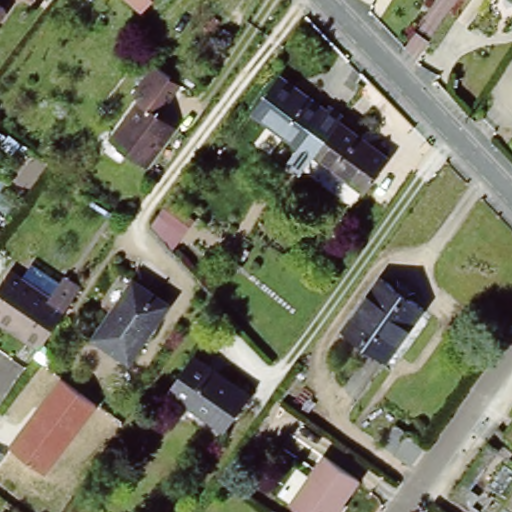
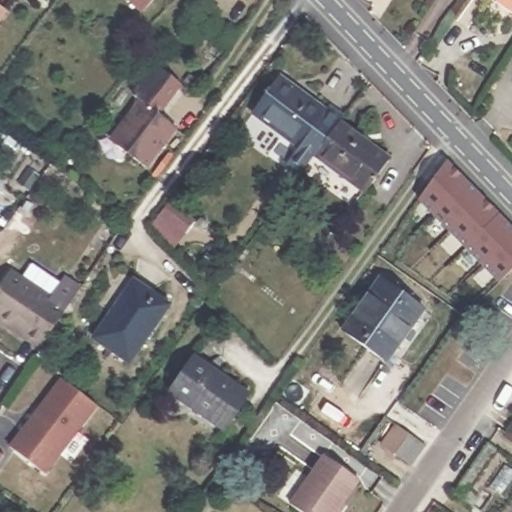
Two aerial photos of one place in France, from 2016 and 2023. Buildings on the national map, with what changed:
unchanged [(131,0),(141,0),(137,4),(131,0)]
unchanged [(0,14),(0,5),(5,8),(0,14)]
unchanged [(157,121),(175,134),(145,175),(108,149),(139,108),(133,103),(157,71),(180,91),(157,121)]
unchanged [(322,107),(297,144),(249,110),(276,73),(322,107)]
new [(285,167),(299,146),(297,144),(322,107),(326,111),(330,104),(345,114),(338,123),(314,156),(300,177),(285,167)]
unchanged [(389,159),(365,193),(314,156),(338,123),(389,159)]
new [(499,282),(418,201),(447,159),(512,225),(512,270),(499,282)]
unchanged [(195,222),(185,234),(160,216),(170,203),(195,222)]
unchanged [(17,280),(26,269),(52,285),(57,278),(74,289),(42,337),(36,346),(33,350),(0,328),(0,277),(3,272),(17,280)]
unchanged [(169,301),(128,359),(92,335),(134,277),(169,301)]
unchanged [(424,309),(387,360),(344,330),(382,279),(424,309)]
unchanged [(250,386),(225,421),(170,383),(195,349),(250,386)]
unchanged [(60,379),(97,407),(47,477),(10,448),(60,379)]
unchanged [(505,435),(512,425),(512,440),(505,435)]
unchanged [(395,452),(410,433),(427,444),(413,465),(395,452)]
unchanged [(452,496),(490,441),(500,448),(469,493),(479,501),(472,511),(452,496)]
unchanged [(0,461),(0,456),(2,458),(0,461)]
unchanged [(359,479),(336,512),(302,512),(292,505),(326,456),(359,479)]

